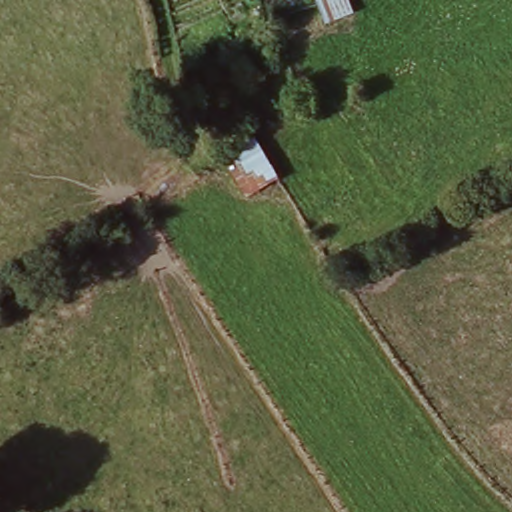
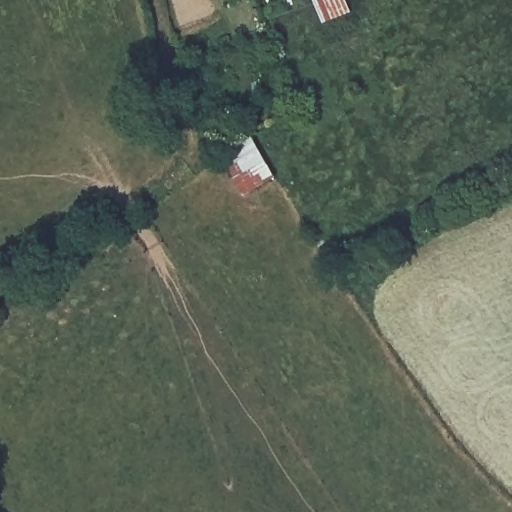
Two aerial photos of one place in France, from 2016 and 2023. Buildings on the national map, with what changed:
unchanged [(322,30),(314,5),(312,0),(341,0),(347,18),(322,30)]
unchanged [(247,135),(275,187),(249,202),(230,169),(226,161),(240,153),(233,142),(247,135)]

